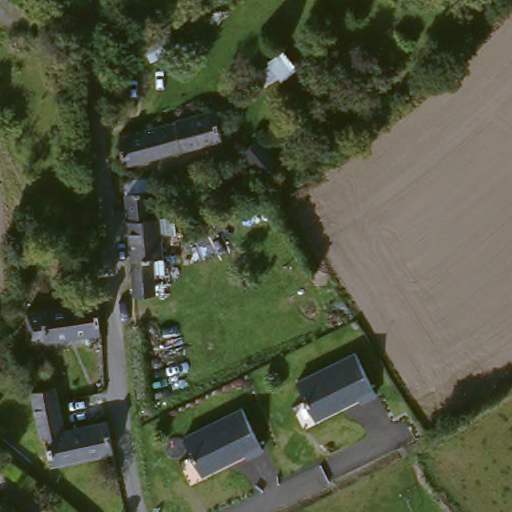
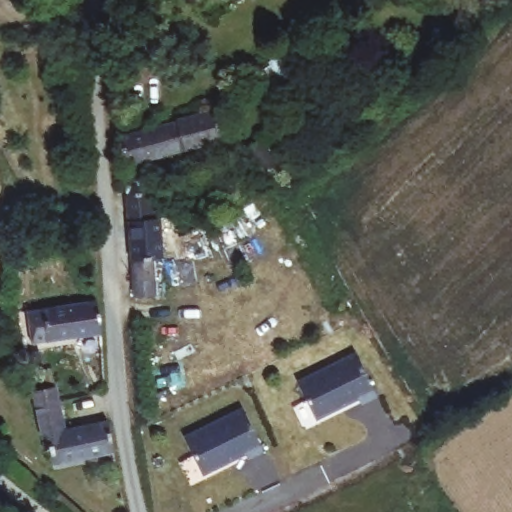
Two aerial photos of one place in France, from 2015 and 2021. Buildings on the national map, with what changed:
unchanged [(215,116),(220,140),(118,165),(115,141),(215,116)]
unchanged [(248,187),(248,181),(245,145),(264,143),(266,184),(248,187)]
unchanged [(144,274),(148,294),(127,298),(119,248),(122,223),(120,193),(119,182),(143,178),(144,189),(149,223),(158,271),(144,274)]
unchanged [(37,340),(34,312),(91,304),(97,314),(97,333),(37,340)]
unchanged [(351,349),(373,388),(318,414),(299,377),(351,349)]
unchanged [(42,464),(42,433),(35,433),(37,392),(59,391),(60,430),(67,431),(106,432),(106,466),(42,464)]
unchanged [(238,405),(261,442),(204,470),(187,432),(238,405)]

